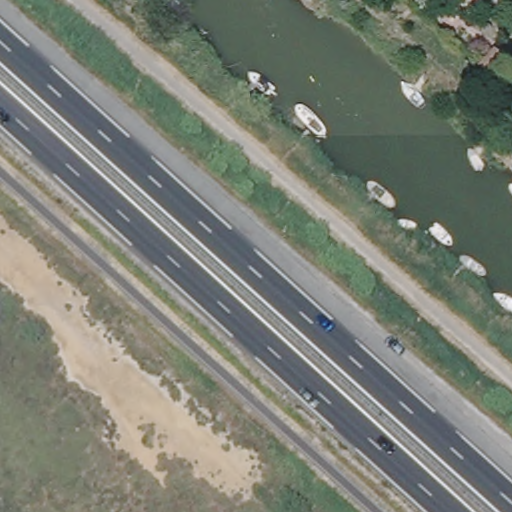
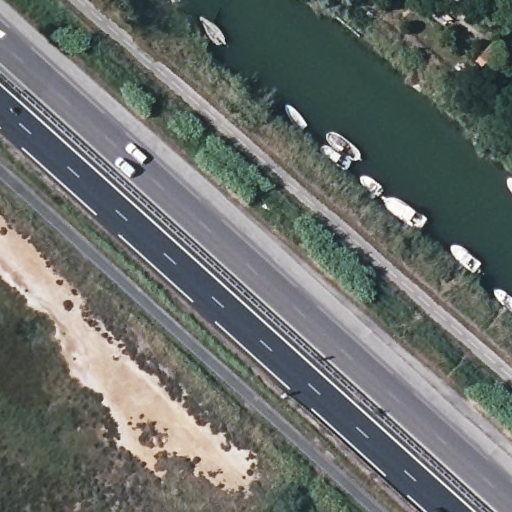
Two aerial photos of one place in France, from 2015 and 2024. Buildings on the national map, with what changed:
unchanged [(460,8),(451,0),(467,0),(460,8)]
unchanged [(507,49),(498,60),(493,56),(502,45),(507,49)]

